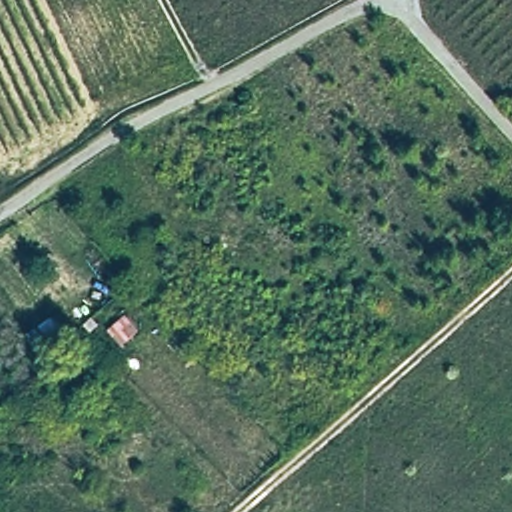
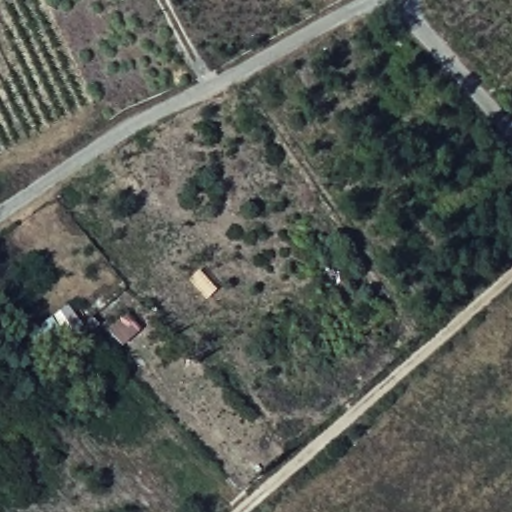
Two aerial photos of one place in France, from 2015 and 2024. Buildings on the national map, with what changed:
[]

